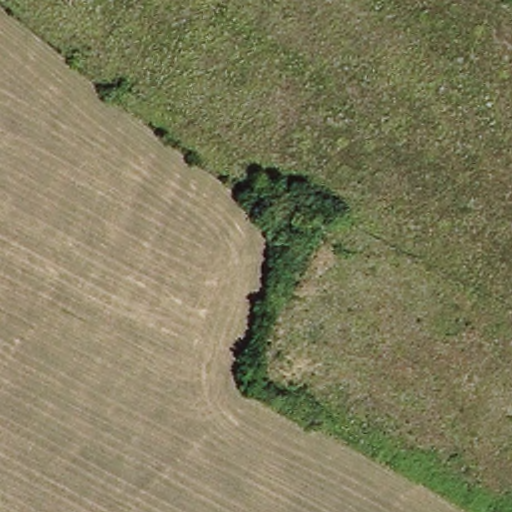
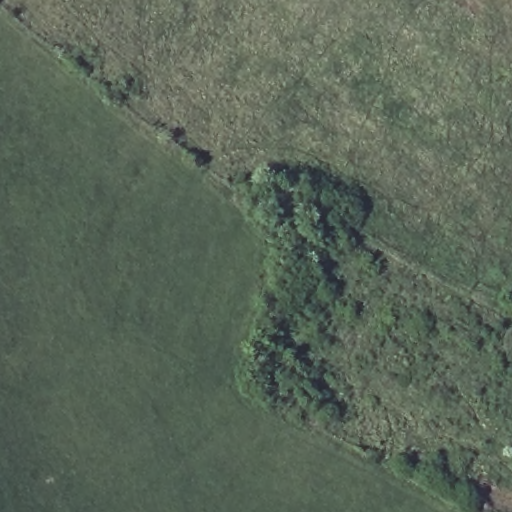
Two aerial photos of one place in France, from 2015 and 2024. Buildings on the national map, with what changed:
[]

